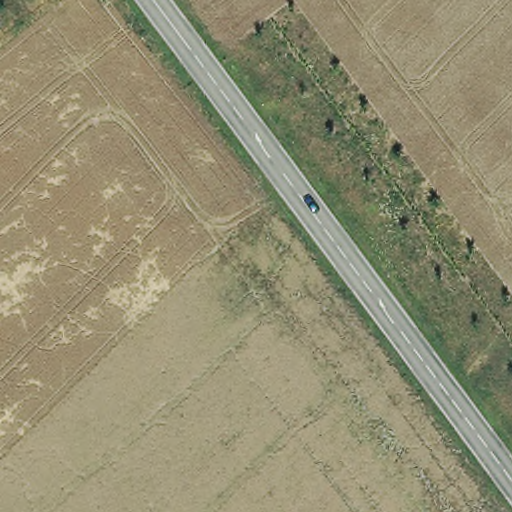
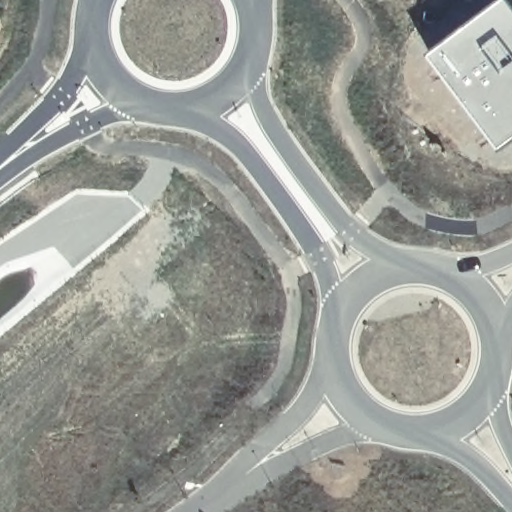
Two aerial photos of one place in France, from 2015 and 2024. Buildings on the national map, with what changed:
new [(512,142),(501,149),(428,55),(502,0),(512,0),(512,142)]

